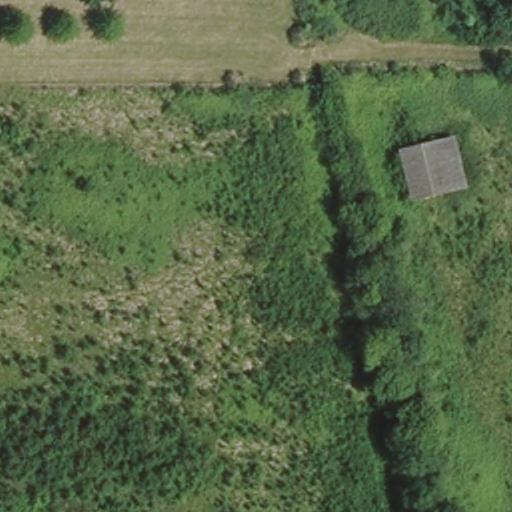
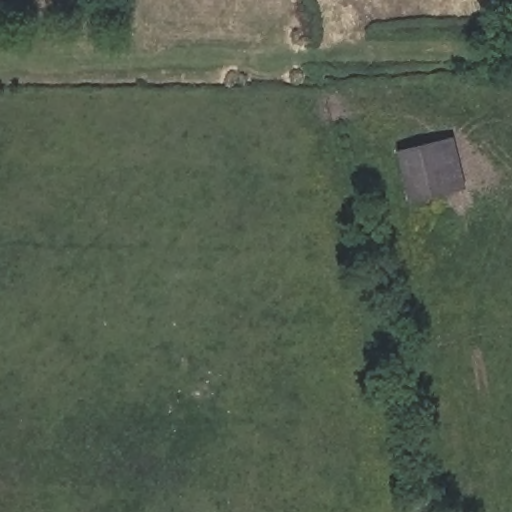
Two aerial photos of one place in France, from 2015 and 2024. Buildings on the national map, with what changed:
unchanged [(399,142),(443,130),(457,181),(414,192),(399,142)]

